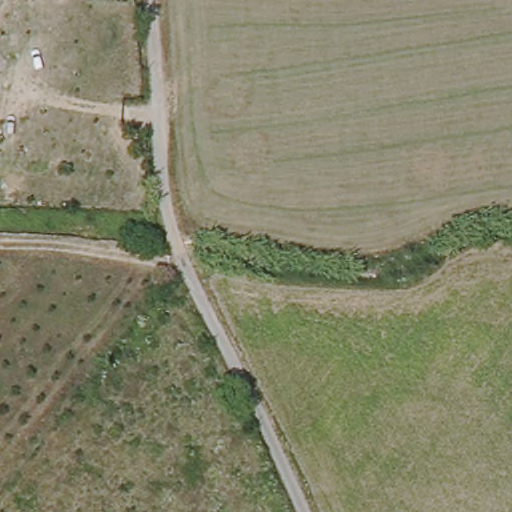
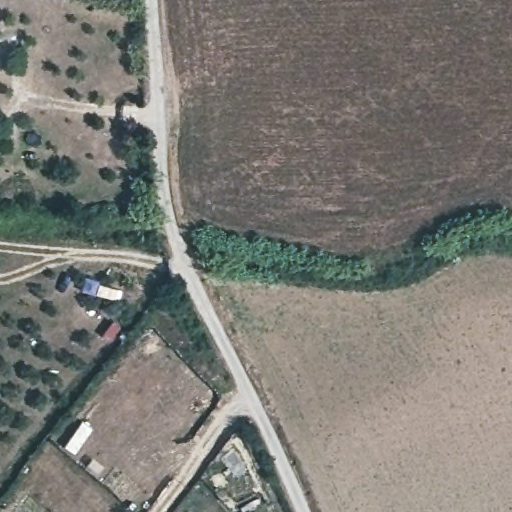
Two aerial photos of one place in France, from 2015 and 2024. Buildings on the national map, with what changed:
[]

